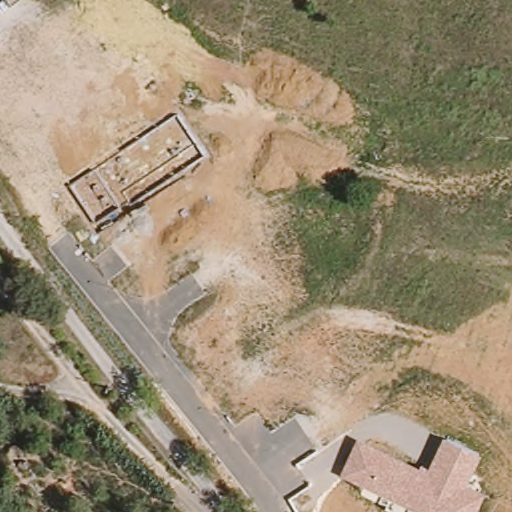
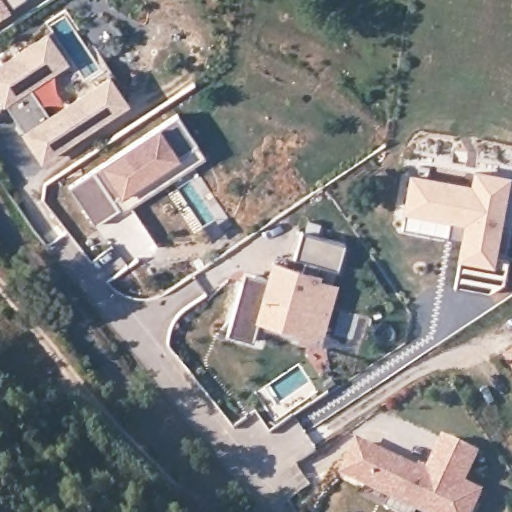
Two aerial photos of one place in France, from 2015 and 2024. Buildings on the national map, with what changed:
new [(0,15),(0,0),(18,0),(7,6),(9,9),(0,15)]
new [(69,62),(32,89),(50,112),(108,74),(128,103),(43,163),(0,100),(0,62),(48,32),(69,62)]
new [(178,114),(206,156),(121,212),(119,210),(95,225),(69,186),(178,114)]
new [(473,186),(476,172),(507,176),(492,257),(508,260),(505,281),(488,293),(455,287),(463,240),(454,237),(457,219),(405,210),(412,177),(473,186)]
new [(344,242),(338,269),(320,265),(318,272),(321,272),(320,277),(338,282),(325,333),(307,342),(299,341),(301,333),(257,322),(253,341),(227,335),(245,273),(266,278),(271,260),(304,269),(306,261),(295,258),(302,232),(344,242)]
unchanged [(512,364),(508,358),(512,356),(512,364)]
unchanged [(469,485),(486,492),(478,512),(417,512),(340,477),(358,438),(421,468),(423,463),(431,467),(445,437),(483,452),(469,485)]

